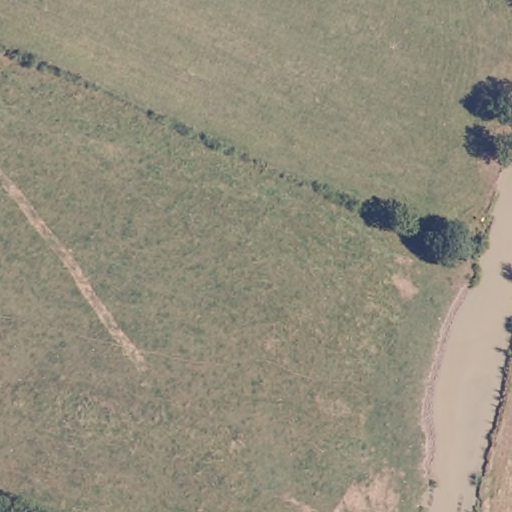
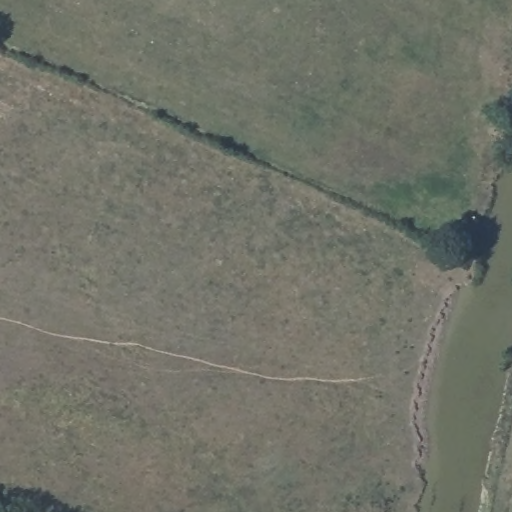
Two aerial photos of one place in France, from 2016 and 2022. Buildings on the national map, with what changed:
[]

